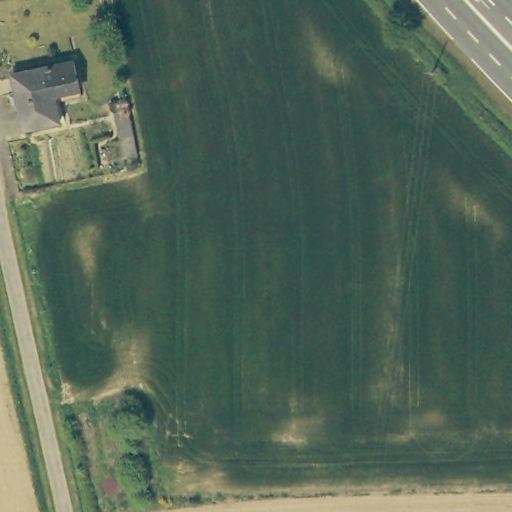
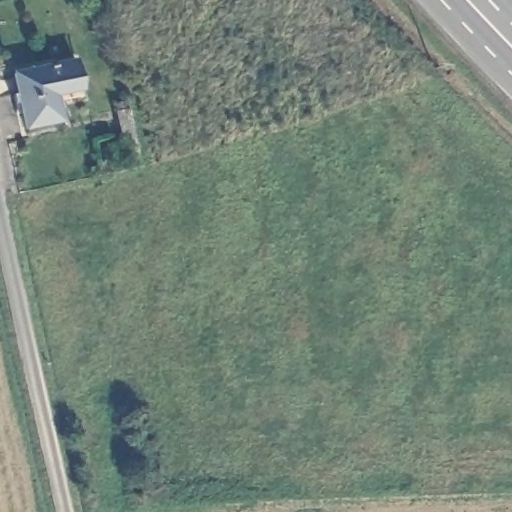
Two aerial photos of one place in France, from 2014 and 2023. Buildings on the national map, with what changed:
unchanged [(15,73),(75,61),(81,85),(55,91),(61,121),(26,128),(15,73)]
unchanged [(115,112),(128,109),(138,154),(124,157),(115,112)]

